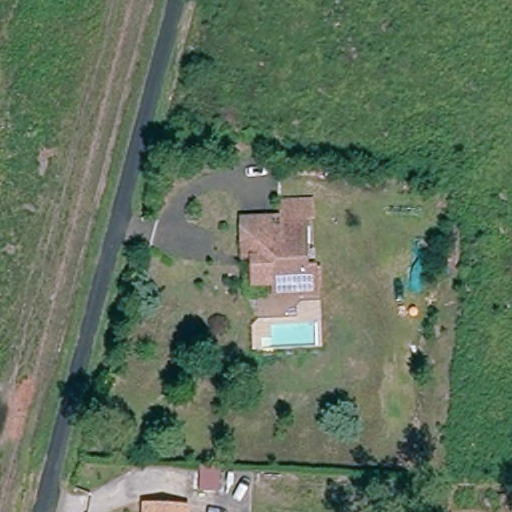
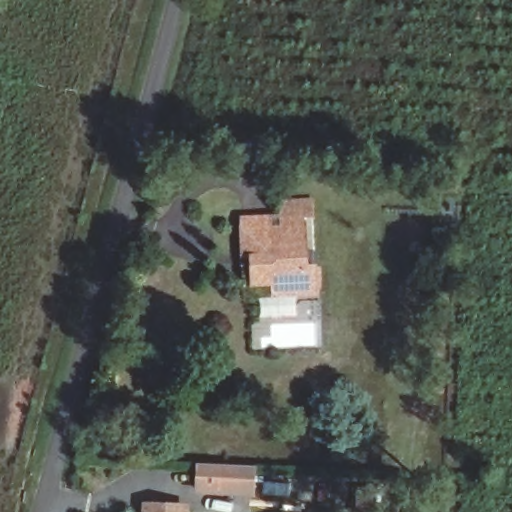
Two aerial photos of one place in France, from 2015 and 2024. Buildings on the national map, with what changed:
unchanged [(275,283),(257,284),(257,267),(258,267),(258,258),(247,258),(246,245),(245,217),(256,217),(274,216),(274,227),(285,227),(284,215),(307,214),(310,267),(318,267),(320,295),(298,296),(275,297),(275,283)]
unchanged [(222,469),(221,494),(201,495),(202,468),(222,469)]

